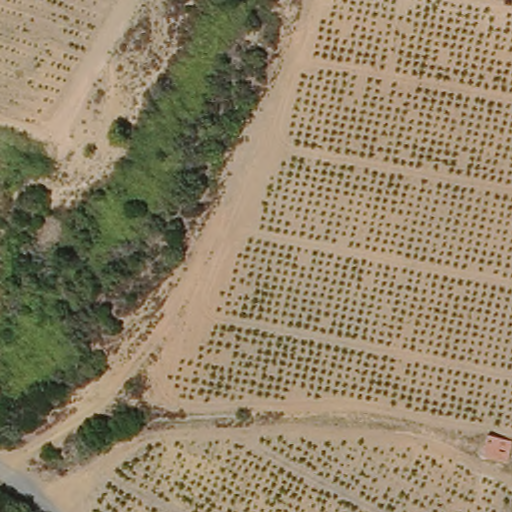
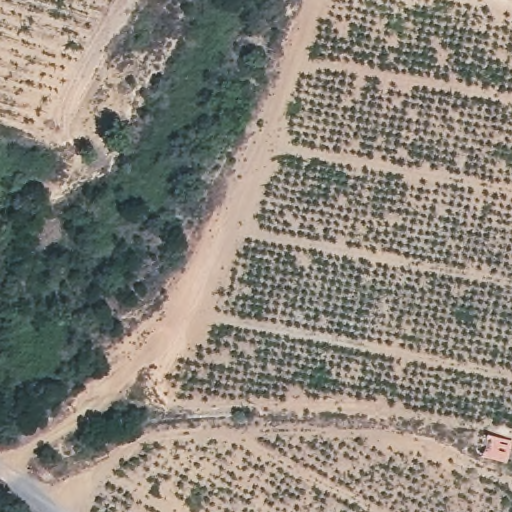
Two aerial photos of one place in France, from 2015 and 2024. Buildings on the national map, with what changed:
unchanged [(512,440),(512,446),(505,460),(480,449),(488,429),(512,440)]

